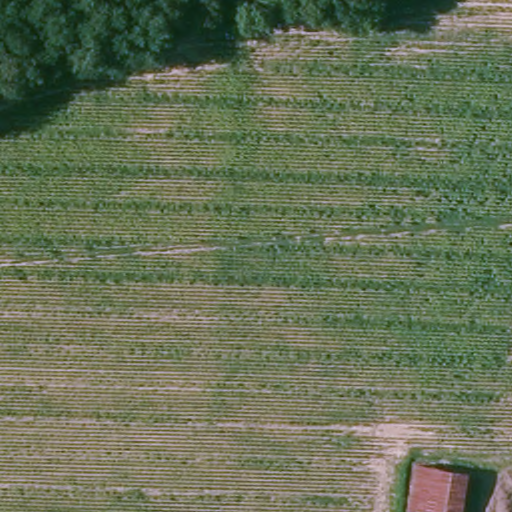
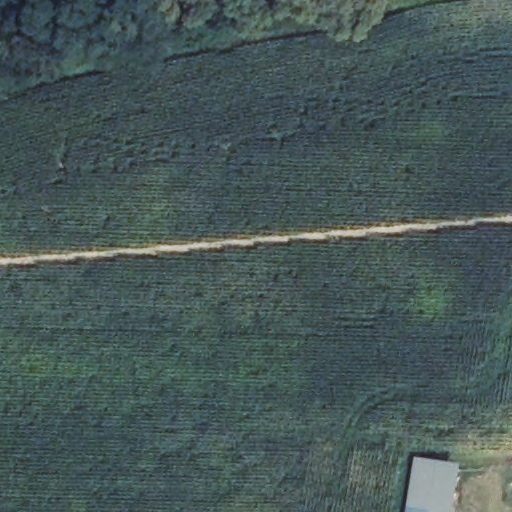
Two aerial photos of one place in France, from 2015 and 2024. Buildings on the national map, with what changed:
unchanged [(424,512),(411,510),(418,465),(468,473),(462,512),(424,512)]

